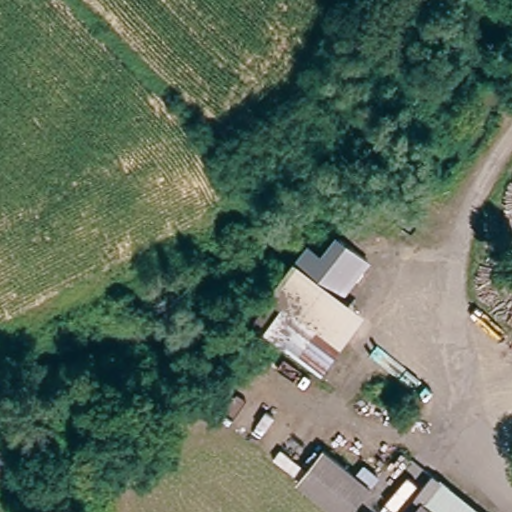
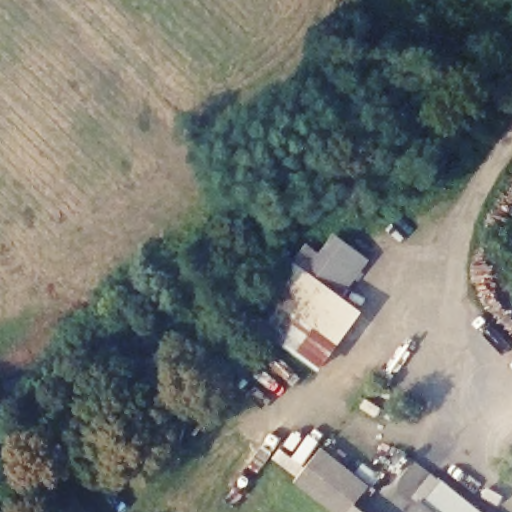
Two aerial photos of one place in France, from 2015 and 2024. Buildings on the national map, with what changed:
unchanged [(341,235),(359,249),(333,285),(315,271),(341,235)]
unchanged [(368,312),(326,372),(268,330),(285,308),(277,302),(303,261),(315,271),(333,285),(368,312)]
unchanged [(330,447),(377,485),(362,503),(373,512),(339,512),(302,483),(330,447)]
unchanged [(441,486),(450,493),(473,512),(419,512),(441,486)]

